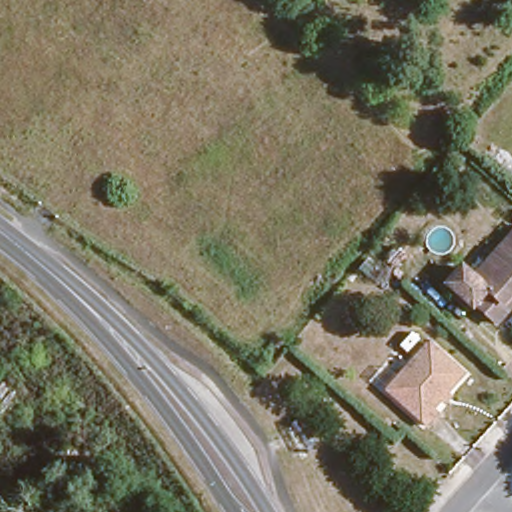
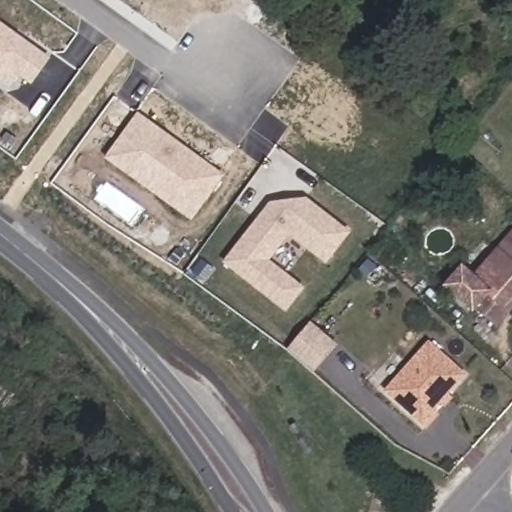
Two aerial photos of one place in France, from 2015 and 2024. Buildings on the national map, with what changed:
new [(9,87),(0,81),(0,22),(49,57),(31,85),(18,76),(9,87)]
new [(104,158),(136,112),(224,176),(192,221),(104,158)]
new [(304,288),(285,312),(221,263),(269,202),(308,197),(351,233),(325,265),(289,237),(269,261),(304,288)]
unchanged [(505,316),(486,298),(481,302),(453,280),(472,260),(479,267),(512,232),(512,308),(505,316)]
new [(286,350),(310,321),(338,345),(313,373),(286,350)]
unchanged [(434,410),(425,420),(387,385),(429,337),(464,367),(429,406),(434,410)]

